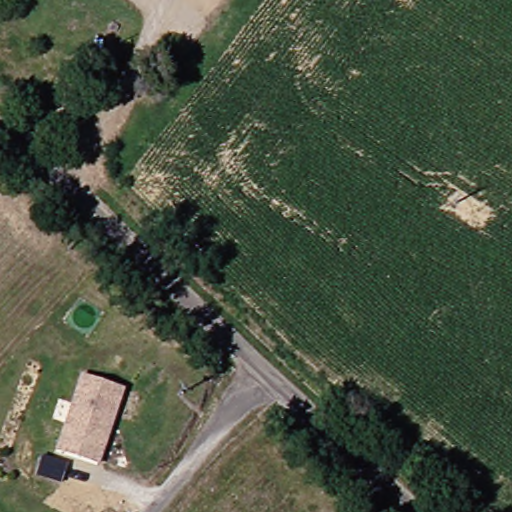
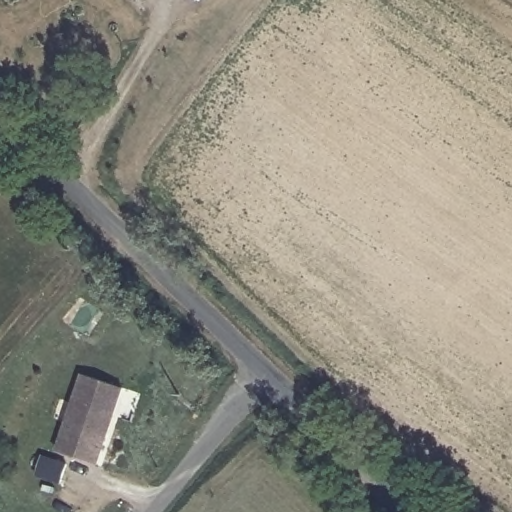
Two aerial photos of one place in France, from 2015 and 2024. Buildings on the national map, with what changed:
unchanged [(104,457),(63,446),(87,367),(128,380),(119,408),(116,420),(104,457)]
unchanged [(68,477),(43,470),(49,450),(74,457),(68,477)]

